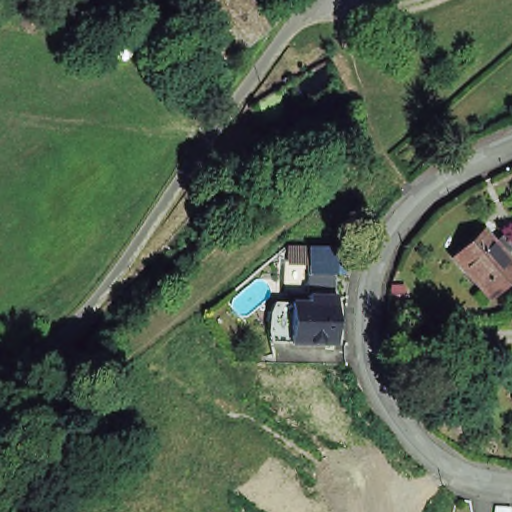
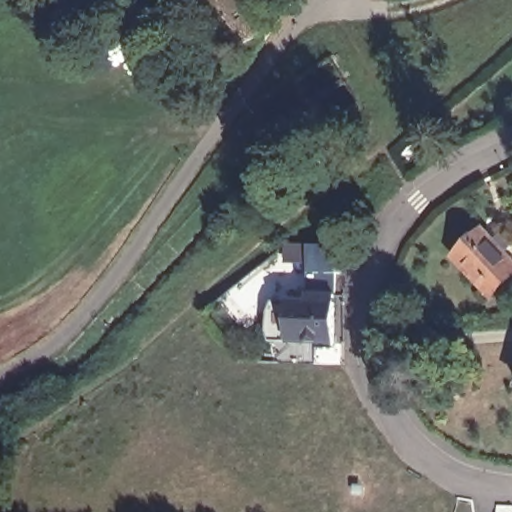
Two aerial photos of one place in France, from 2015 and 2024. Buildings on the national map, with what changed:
unchanged [(226,62),(181,0),(231,0),(259,39),(226,62)]
unchanged [(484,230),(505,253),(510,248),(512,250),(512,280),(493,298),(455,256),(484,230)]
unchanged [(311,262),(288,262),(287,248),(311,250),(338,250),(338,273),(335,274),(335,300),(335,348),(291,348),(291,308),(310,308),(310,300),(311,273),(311,262)]

